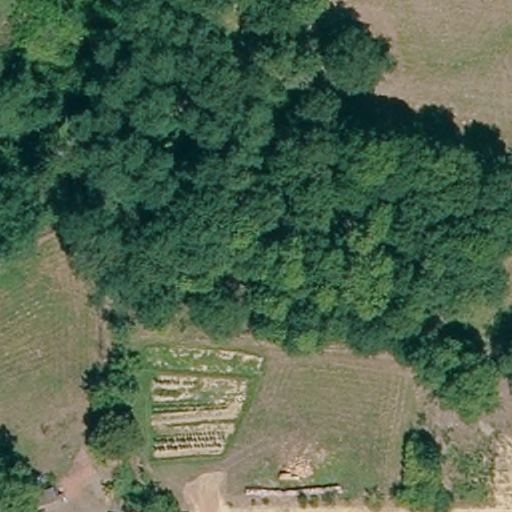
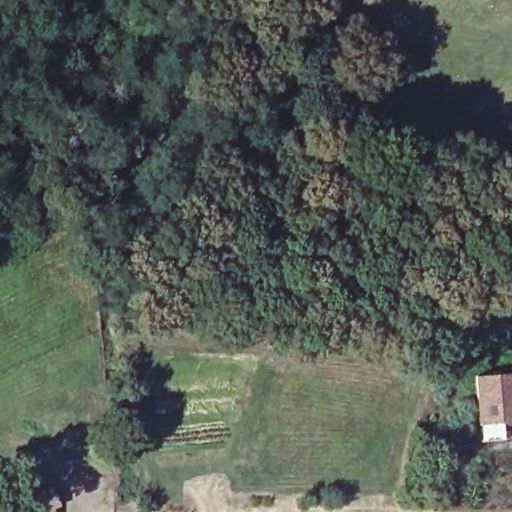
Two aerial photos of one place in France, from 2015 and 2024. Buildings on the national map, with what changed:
new [(512,423),(477,426),(473,377),(512,373),(512,423)]
unchanged [(7,486),(0,492),(0,477),(7,486)]
unchanged [(44,493),(46,500),(47,506),(31,512),(27,512),(26,508),(24,501),(44,493)]

